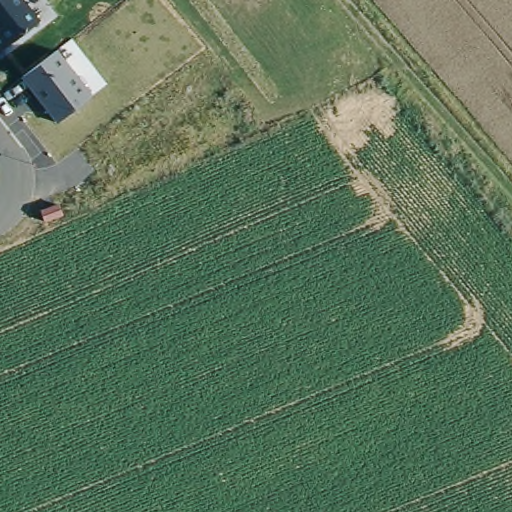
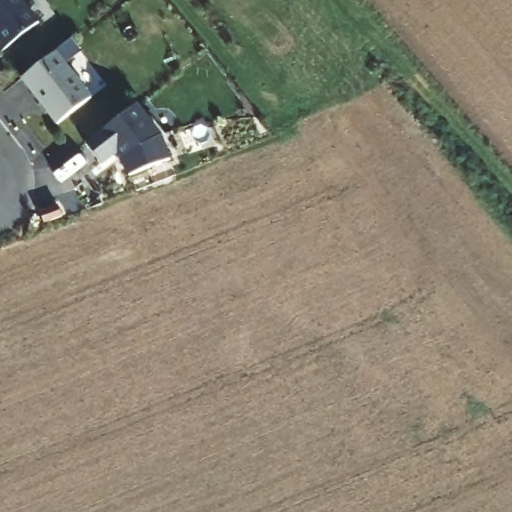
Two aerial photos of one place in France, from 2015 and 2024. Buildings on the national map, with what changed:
unchanged [(5,49),(0,43),(0,0),(24,0),(41,22),(5,49)]
unchanged [(92,96),(57,124),(22,79),(57,50),(92,96)]
new [(141,110),(165,141),(162,161),(132,173),(129,166),(122,157),(105,170),(90,150),(141,110)]

